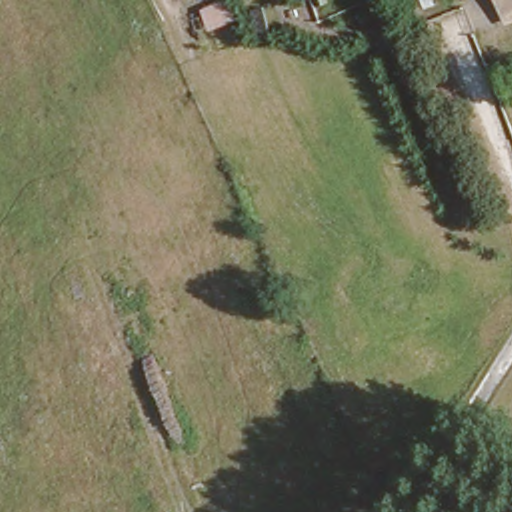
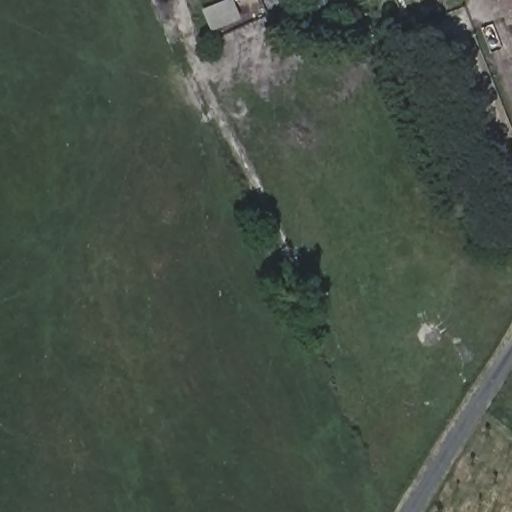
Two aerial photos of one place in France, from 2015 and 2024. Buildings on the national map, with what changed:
unchanged [(202,11),(227,0),(235,0),(241,19),(209,34),(202,11)]
unchanged [(492,0),(512,0),(512,27),(504,30),(492,0)]

